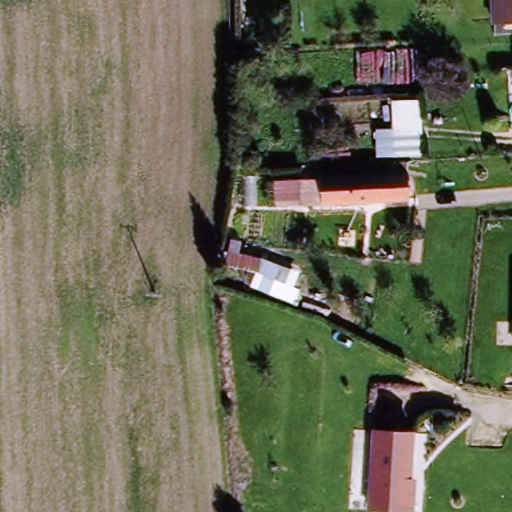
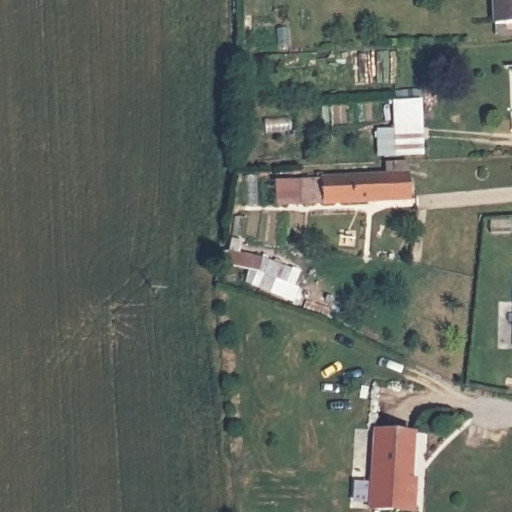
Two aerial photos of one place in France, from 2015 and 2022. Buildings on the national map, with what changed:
unchanged [(493,31),(491,0),(512,0),(512,30),(493,31)]
unchanged [(426,154),(396,155),(394,97),(423,97),(426,154)]
unchanged [(297,181),(296,203),(273,202),(275,180),(297,181)]
unchanged [(405,206),(346,205),(302,204),(303,181),(346,182),(406,184),(405,206)]
unchanged [(256,298),(258,280),(226,269),(227,258),(264,261),(292,278),(289,291),(298,292),(295,308),(256,298)]
unchanged [(412,480),(412,504),(369,503),(372,425),(411,426),(409,480),(412,480)]

